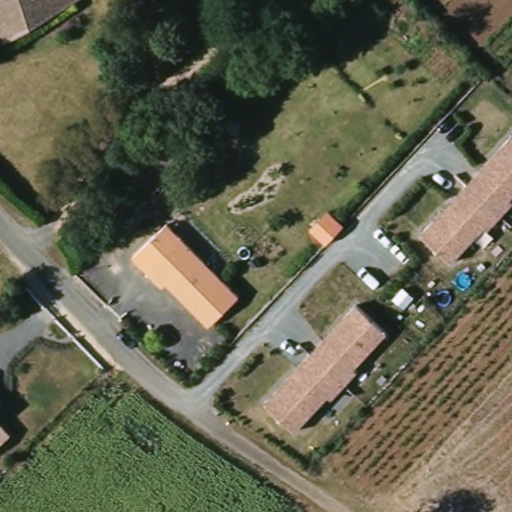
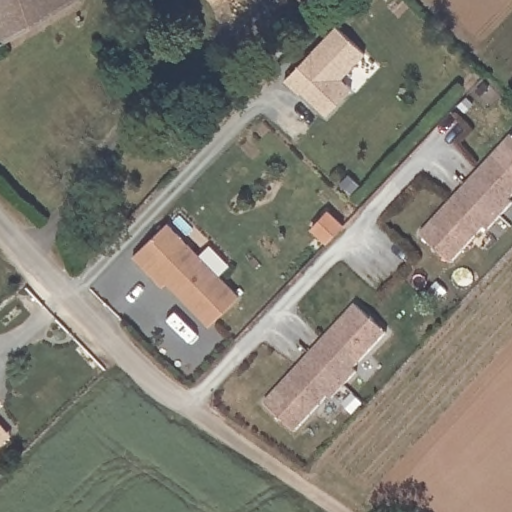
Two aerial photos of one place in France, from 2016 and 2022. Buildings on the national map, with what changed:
unchanged [(0,33),(0,0),(78,0),(3,44),(0,33)]
unchanged [(307,0),(305,2),(302,0),(307,0)]
new [(301,90),(299,92),(285,79),(336,26),(366,52),(342,79),(352,88),(326,115),(301,90)]
unchanged [(511,134),(512,135),(512,198),(453,263),(422,233),(511,134)]
unchanged [(347,225),(328,247),(311,230),(329,209),(347,225)]
unchanged [(240,297),(211,326),(168,282),(163,287),(147,270),(182,239),(240,297)]
unchanged [(387,333),(296,431),(267,402),(357,305),(387,333)]
unchanged [(0,446),(0,422),(12,435),(0,446)]

